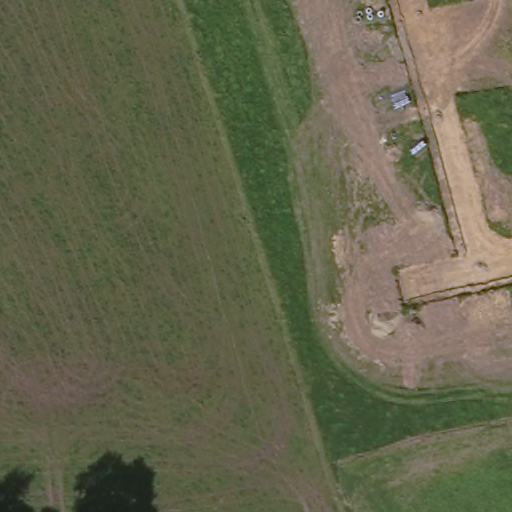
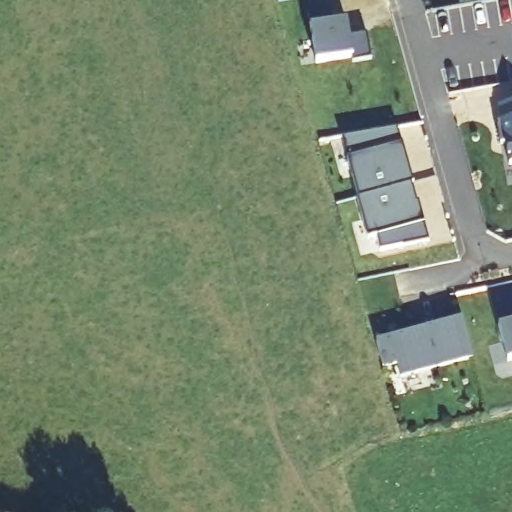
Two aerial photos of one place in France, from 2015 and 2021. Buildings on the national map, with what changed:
unchanged [(331,8),(334,23),(348,20),(351,36),(368,32),(373,59),(355,62),(353,57),(318,63),(309,12),(331,8)]
new [(502,109),(512,107),(512,162),(509,147),(504,147),(500,126),(505,125),(502,109)]
new [(383,255),(379,241),(370,243),(359,202),(360,202),(349,162),(343,141),(352,139),(373,135),(400,130),(405,146),(415,185),(414,185),(420,203),(421,203),(427,225),(432,242),(405,250),(383,255)]
new [(462,321),(476,357),(401,379),(397,366),(383,370),(376,345),(462,321)]
new [(512,360),(510,360),(500,326),(512,322),(512,360)]

